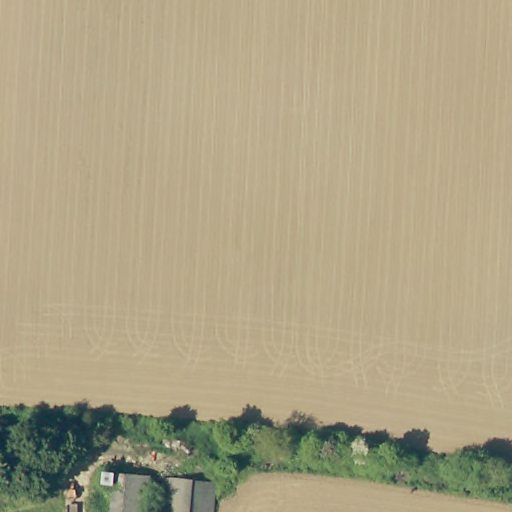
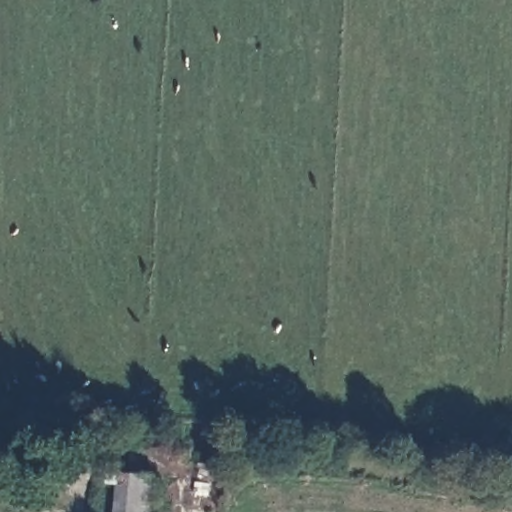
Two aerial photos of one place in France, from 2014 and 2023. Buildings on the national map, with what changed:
unchanged [(147,476),(144,512),(108,512),(111,473),(147,476)]
unchanged [(212,482),(209,512),(159,512),(162,477),(212,482)]

